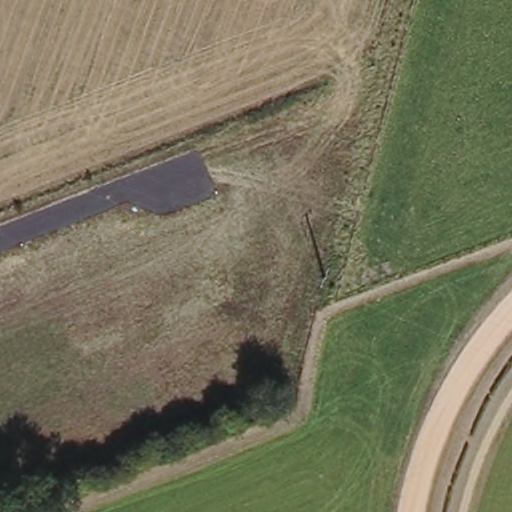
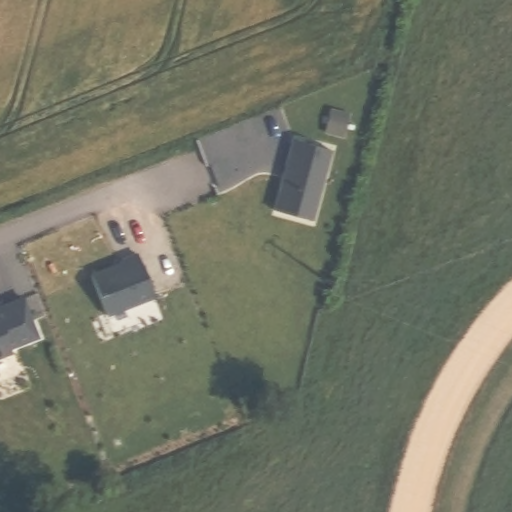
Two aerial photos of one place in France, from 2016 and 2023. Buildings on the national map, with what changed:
new [(330,147),(311,217),(274,207),(293,137),(330,147)]
new [(122,260),(121,257),(137,252),(153,294),(106,312),(90,272),(122,260)]
new [(2,307),(1,304),(21,296),(37,335),(8,346),(10,350),(0,355),(0,308),(2,307)]

